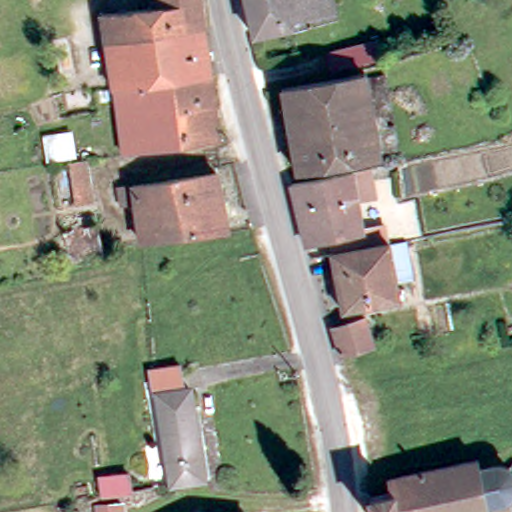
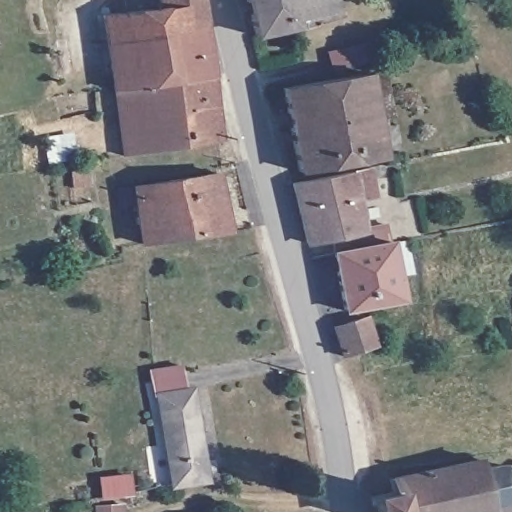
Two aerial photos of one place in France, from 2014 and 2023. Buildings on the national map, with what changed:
unchanged [(107,10),(165,2),(164,0),(207,0),(211,23),(112,45),(107,10)]
unchanged [(260,31),(253,0),(339,0),(341,10),(260,31)]
unchanged [(217,71),(119,85),(112,45),(211,23),(217,71)]
unchanged [(384,60),(332,70),(329,56),(381,46),(384,60)]
unchanged [(129,150),(129,148),(119,85),(217,71),(225,135),(129,150)]
unchanged [(387,156),(302,171),(287,88),(371,72),(387,156)]
unchanged [(67,136),(72,159),(47,163),(42,141),(67,136)]
unchanged [(92,163),(99,200),(75,204),(68,166),(92,163)]
unchanged [(366,232),(368,245),(344,251),(340,251),(337,237),(312,243),(297,182),(332,175),(375,166),(377,179),(380,195),(362,198),(368,231),(366,232)]
unchanged [(202,231),(147,239),(140,197),(126,199),(123,183),(222,168),(234,227),(202,233),(202,231)]
unchanged [(62,233),(96,224),(104,252),(69,261),(62,233)]
unchanged [(368,245),(395,241),(395,242),(410,239),(416,272),(402,275),(406,299),(349,310),(337,252),(340,251),(344,251),(368,245)]
unchanged [(380,345),(347,355),(339,326),(370,316),(380,345)]
unchanged [(157,405),(154,380),(187,375),(191,400),(195,399),(209,488),(176,494),(162,404),(157,405)]
unchanged [(380,496),(401,492),(399,479),(488,459),(491,469),(507,465),(512,465),(512,512),(383,512),(380,496)]
unchanged [(129,475),(132,493),(115,495),(101,497),(98,480),(129,475)]
unchanged [(75,511),(75,512),(70,512),(75,511)]

